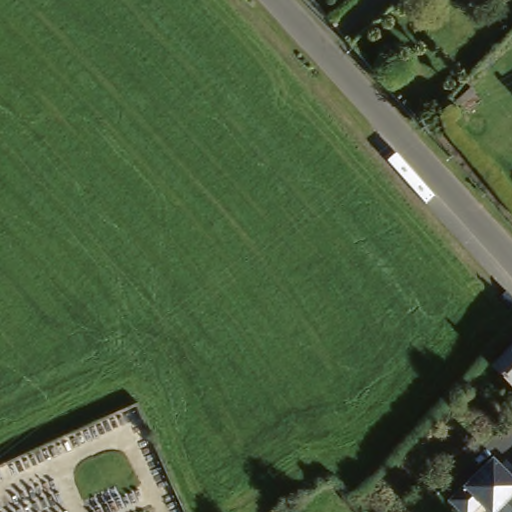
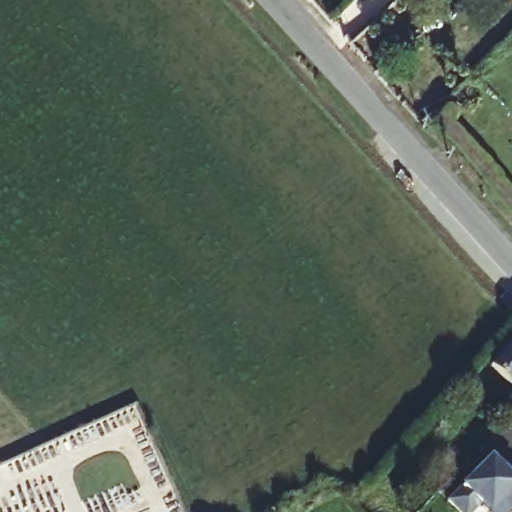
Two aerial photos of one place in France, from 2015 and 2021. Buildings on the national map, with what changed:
unchanged [(512,390),(511,390),(488,371),(512,342),(512,390)]
unchanged [(454,512),(446,502),(491,462),(509,481),(512,479),(512,512),(508,512),(501,505),(494,512),(483,512),(479,507),(473,512),(454,512)]

